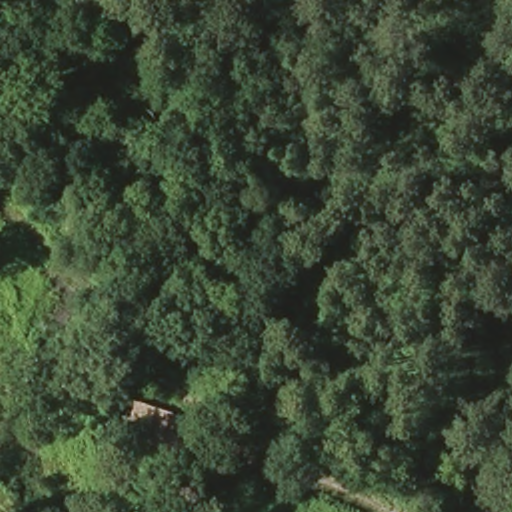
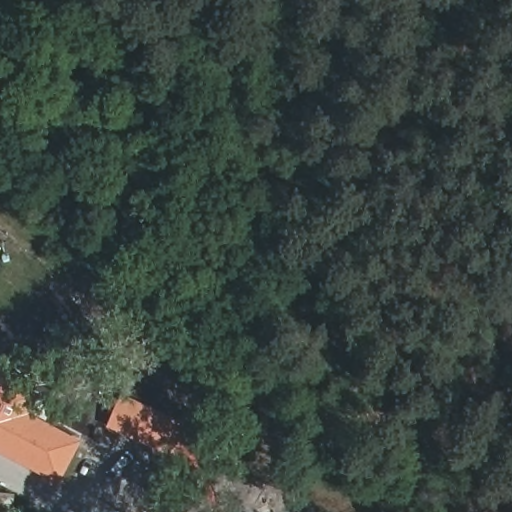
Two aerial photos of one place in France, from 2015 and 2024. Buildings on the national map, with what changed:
new [(60,485),(0,453),(0,383),(37,402),(32,413),(82,441),(60,485)]
unchanged [(120,398),(186,427),(175,451),(110,427),(120,398)]
new [(0,512),(0,493),(14,494),(13,512),(0,512)]

